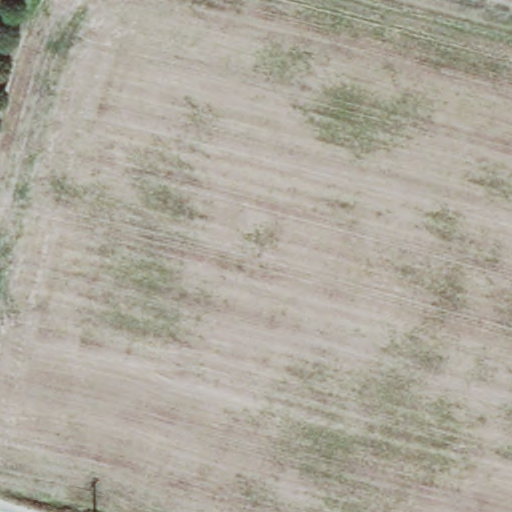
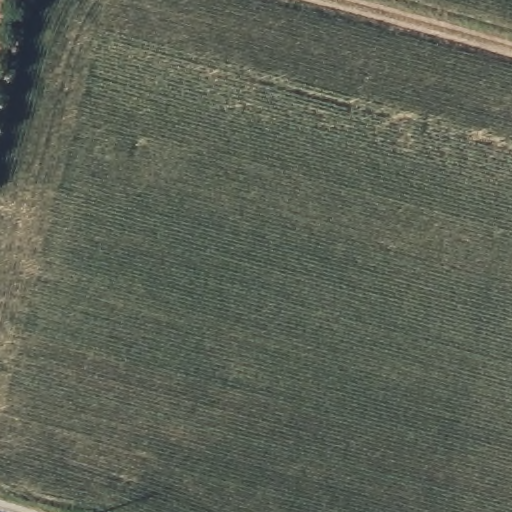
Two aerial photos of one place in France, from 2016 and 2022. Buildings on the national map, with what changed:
[]

